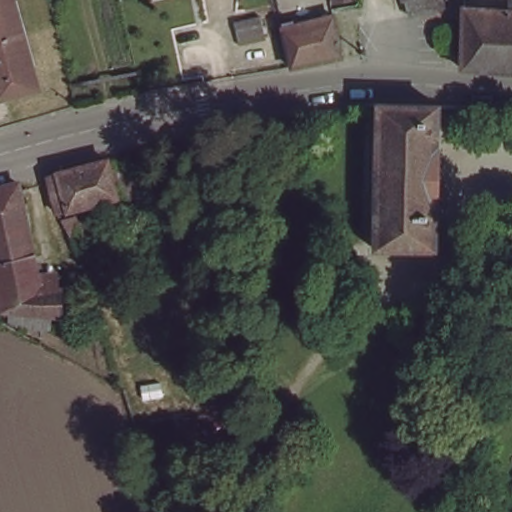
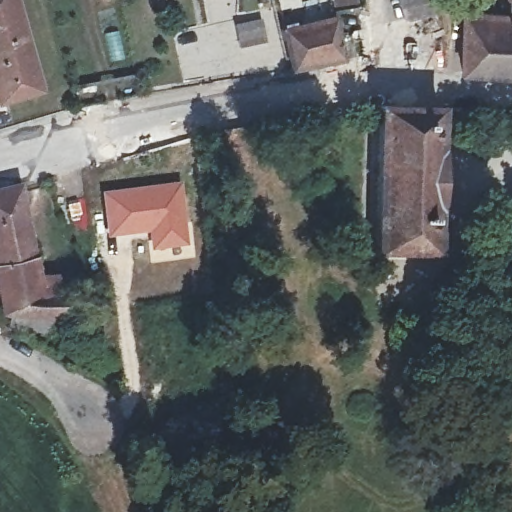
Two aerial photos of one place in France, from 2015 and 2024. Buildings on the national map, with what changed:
unchanged [(0,93),(0,0),(13,0),(37,82),(0,93)]
unchanged [(332,2),(331,0),(346,0),(332,2)]
unchanged [(414,15),(412,4),(411,0),(444,0),(445,11),(414,15)]
unchanged [(485,64),(463,62),(465,1),(512,7),(512,68),(485,64)]
unchanged [(263,12),(267,29),(239,34),(235,18),(263,12)]
unchanged [(342,54),(294,62),(285,24),(334,12),(342,54)]
unchanged [(437,114),(435,256),(375,254),(373,110),(437,114)]
demolished [(117,195),(57,212),(55,200),(48,175),(102,160),(108,159),(117,195)]
unchanged [(20,177),(25,201),(0,207),(0,182),(12,179),(20,177)]
new [(183,181),(190,245),(150,251),(148,233),(105,238),(100,190),(183,181)]
unchanged [(0,207),(25,201),(34,249),(0,256),(0,207)]
demolished [(75,215),(87,236),(82,240),(87,250),(79,254),(61,220),(75,215)]
demolished [(194,239),(197,271),(165,276),(162,244),(194,239)]
unchanged [(42,286),(58,283),(59,308),(45,307),(43,320),(22,317),(12,312),(12,307),(5,305),(0,282),(0,256),(34,249),(42,286)]
unchanged [(111,277),(115,289),(107,291),(102,281),(111,277)]
unchanged [(508,381),(505,343),(503,333),(512,333),(512,380),(508,381)]
unchanged [(229,359),(221,360),(220,350),(215,350),(213,338),(227,337),(229,359)]

